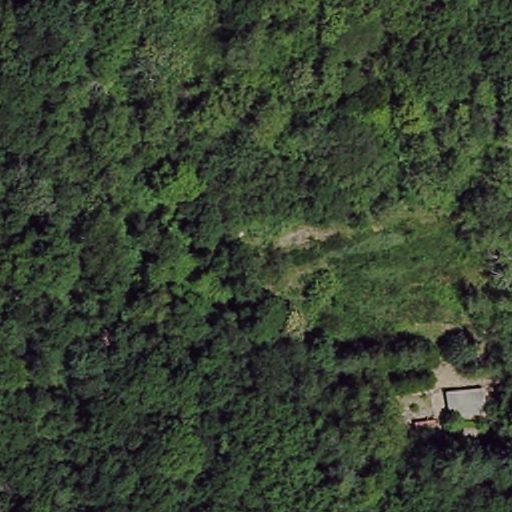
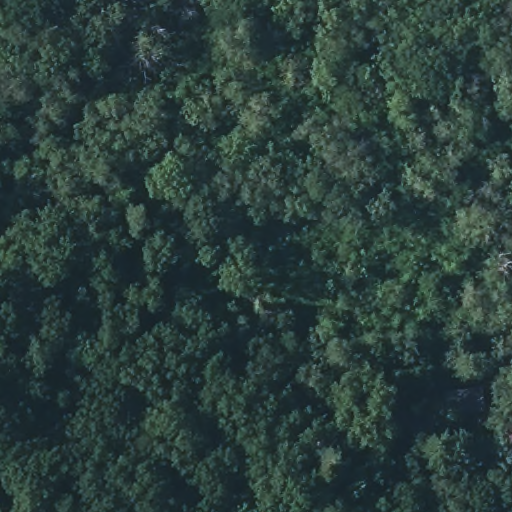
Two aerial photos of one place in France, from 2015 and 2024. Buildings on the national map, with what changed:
unchanged [(470,418),(448,419),(447,392),(468,392),(470,418)]
unchanged [(439,441),(414,443),(410,424),(435,422),(439,441)]

